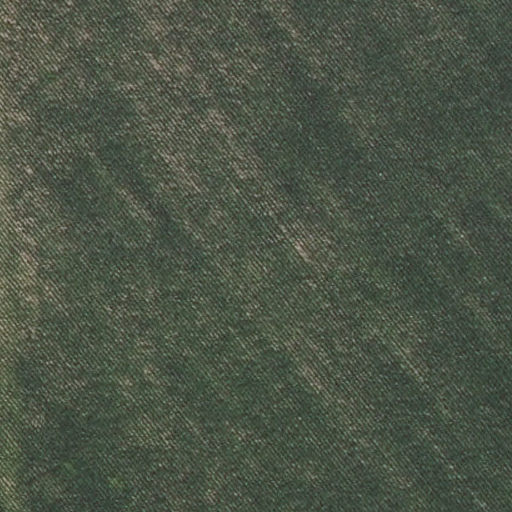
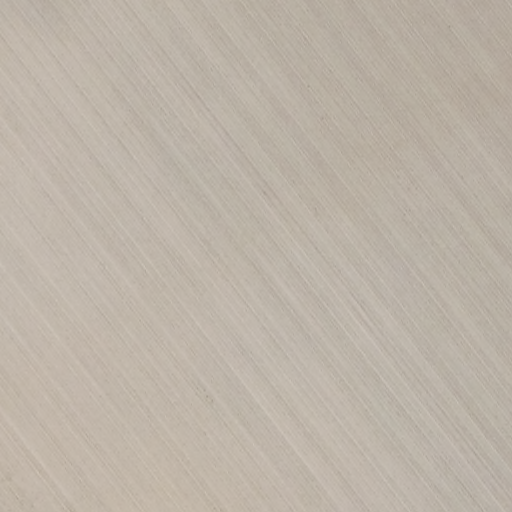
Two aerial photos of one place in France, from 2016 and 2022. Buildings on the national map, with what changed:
[]

